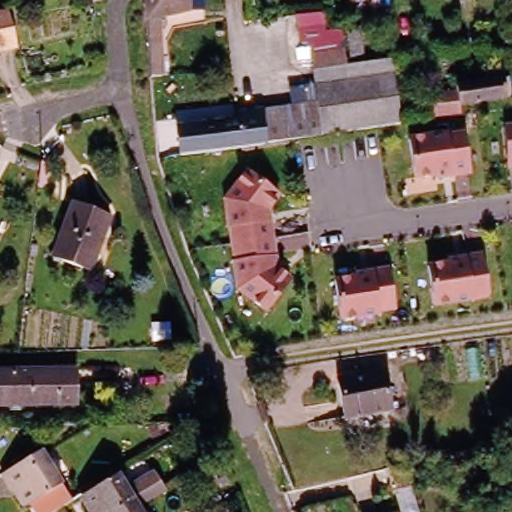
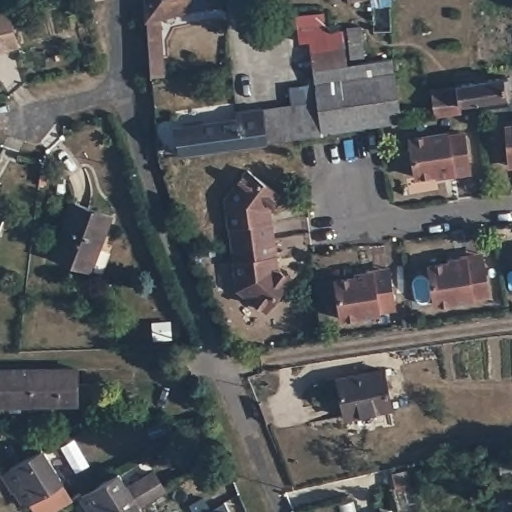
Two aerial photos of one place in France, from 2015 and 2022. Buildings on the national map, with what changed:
unchanged [(90,0),(95,0),(91,1),(90,0)]
unchanged [(191,8),(160,15),(161,49),(150,50),(147,17),(147,0),(204,0),(205,7),(191,8)]
unchanged [(356,0),(346,2),(346,0),(356,0)]
unchanged [(9,39),(10,41),(0,44),(0,10),(19,5),(25,35),(9,39)]
unchanged [(350,62),(347,36),(360,34),(362,61),(350,62)]
unchanged [(399,124),(321,134),(317,108),(313,77),(312,65),(345,60),(347,73),(391,67),(399,124)]
unchanged [(452,92),(451,90),(505,80),(507,91),(504,92),(505,97),(500,98),(500,100),(455,108),(457,115),(432,119),(429,96),(452,92)]
unchanged [(178,154),(176,133),(264,121),(263,115),(317,108),(321,134),(322,135),(178,154)]
unchanged [(506,121),(512,121),(512,163),(509,163),(506,121)]
unchanged [(460,128),(466,169),(414,177),(406,136),(460,128)]
unchanged [(224,193),(243,168),(276,193),(267,209),(273,265),(285,274),(264,308),(237,291),(224,193)]
unchanged [(112,211),(91,265),(52,250),(73,197),(112,211)]
unchanged [(429,262),(462,258),(477,257),(484,296),(471,297),(432,303),(429,262)]
unchanged [(333,278),(371,272),(387,271),(396,306),(379,311),(339,318),(333,278)]
unchanged [(391,407),(342,416),(335,376),(383,367),(391,407)]
unchanged [(0,404),(0,372),(77,369),(77,401),(0,404)]
unchanged [(14,488),(7,491),(0,479),(0,472),(41,448),(61,482),(24,504),(14,488)]
unchanged [(93,510),(82,492),(120,469),(130,487),(157,471),(167,490),(141,505),(129,512),(91,512),(93,510)]
unchanged [(386,476),(410,470),(414,486),(390,492),(386,476)]
unchanged [(141,505),(145,512),(129,512),(141,505)]

